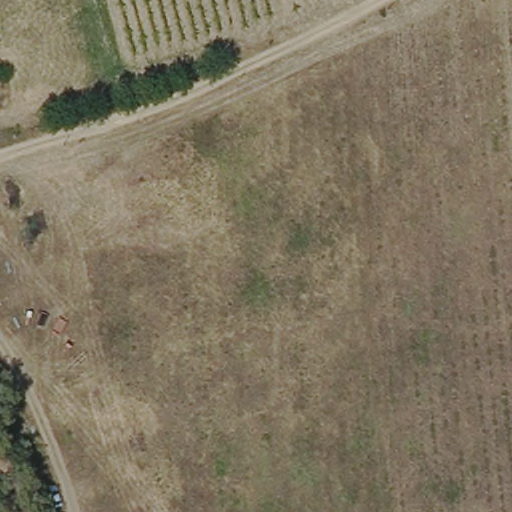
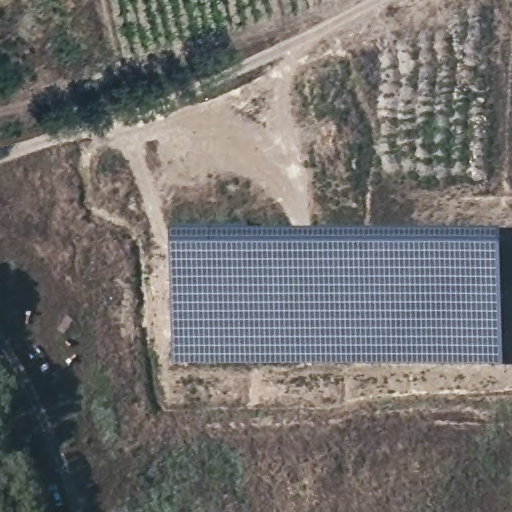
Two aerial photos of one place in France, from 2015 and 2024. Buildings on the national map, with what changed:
new [(175,367),(174,236),(504,236),(502,367),(175,367)]

